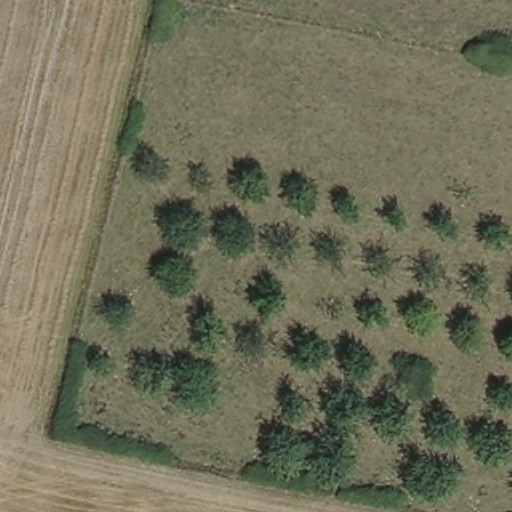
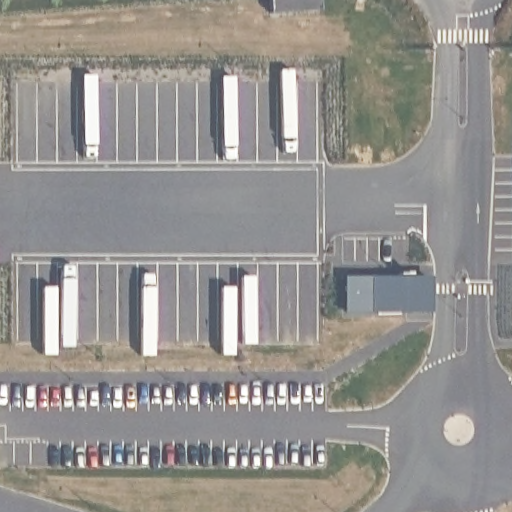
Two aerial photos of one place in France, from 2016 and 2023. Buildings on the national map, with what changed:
new [(344,277),(433,276),(433,312),(344,315),(344,277)]

